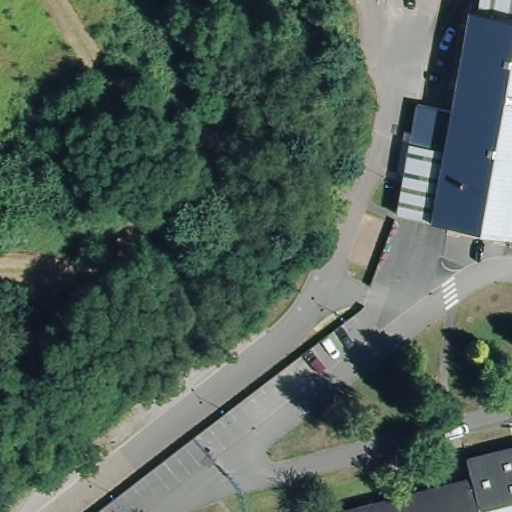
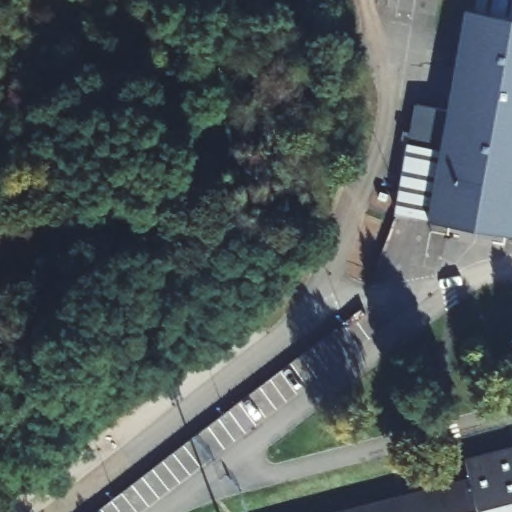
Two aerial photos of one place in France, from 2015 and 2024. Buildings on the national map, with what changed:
unchanged [(416,102),(448,108),(467,7),(468,7),(469,1),(476,2),(476,0),(512,0),(512,233),(395,211),(416,102)]
unchanged [(471,474),(467,454),(512,442),(512,496),(450,512),(323,512),(471,474)]
unchanged [(512,496),(512,512),(450,512),(512,496)]

